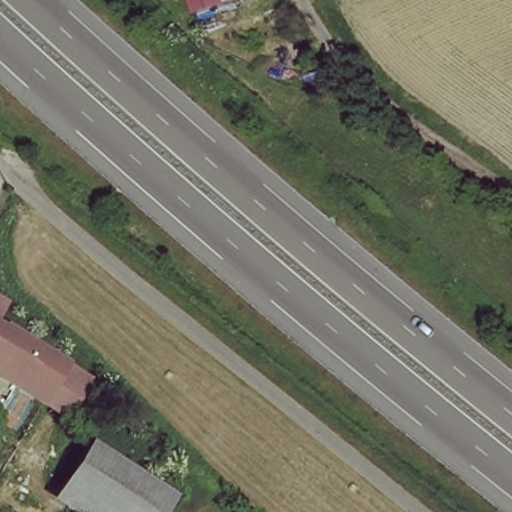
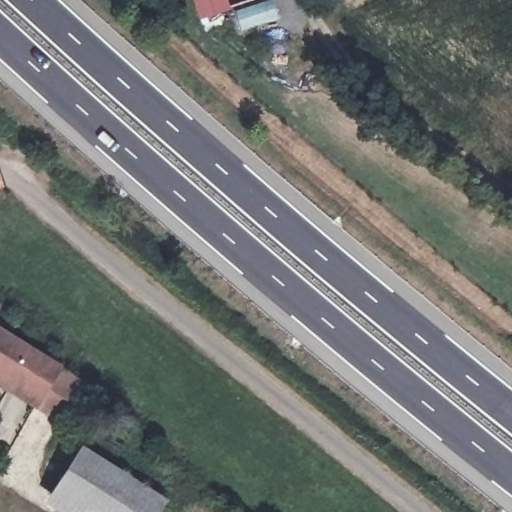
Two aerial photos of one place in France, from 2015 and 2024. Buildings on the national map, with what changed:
unchanged [(200,15),(194,0),(242,0),(200,15)]
unchanged [(31,386),(0,366),(0,331),(64,372),(42,407),(27,397),(31,386)]
unchanged [(162,510),(161,512),(66,512),(48,501),(79,456),(162,510)]

